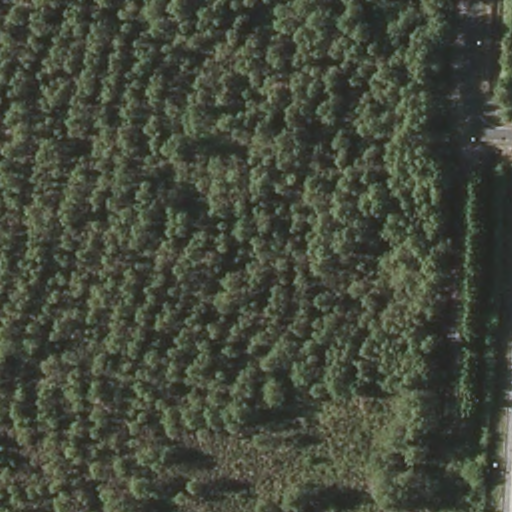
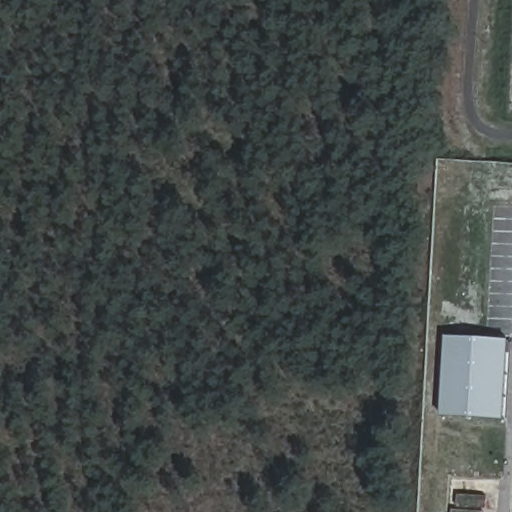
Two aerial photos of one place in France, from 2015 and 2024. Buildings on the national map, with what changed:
new [(504,343),(500,421),(438,417),(443,339),(504,343)]

